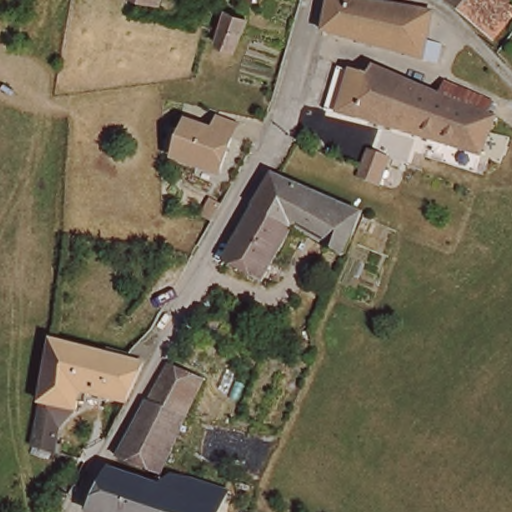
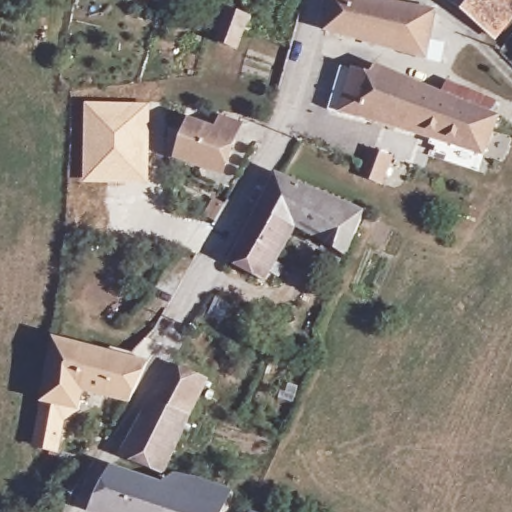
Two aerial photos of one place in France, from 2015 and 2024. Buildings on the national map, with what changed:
unchanged [(166,7),(142,0),(168,0),(166,7)]
unchanged [(439,45),(438,60),(326,31),(330,0),(378,0),(432,7),(434,10),(428,42),(439,45)]
unchanged [(459,3),(462,0),(512,0),(512,1),(487,32),(462,7),(459,3)]
unchanged [(238,47),(224,42),(226,31),(231,11),(247,15),(243,32),(238,47)]
unchanged [(330,101),(343,105),(353,70),(386,80),(383,92),(374,122),(344,112),(328,112),(330,101)]
unchanged [(447,160),(452,145),(374,122),(383,92),(386,80),(388,70),(454,95),(455,96),(458,83),(509,104),(507,117),(495,157),(491,172),(447,160)]
new [(84,102),(149,103),(149,185),(83,182),(84,102)]
unchanged [(223,177),(173,160),(190,120),(214,129),(221,115),(241,123),(223,177)]
unchanged [(362,176),(373,147),(392,155),(381,183),(362,176)]
unchanged [(269,281),(231,261),(277,176),(286,180),(341,202),(332,217),(311,207),(298,230),(269,281)]
unchanged [(311,207),(332,217),(341,202),(368,213),(350,256),(298,230),(311,207)]
unchanged [(144,363),(124,402),(83,389),(78,407),(59,426),(54,452),(32,444),(49,340),(128,360),(144,363)]
unchanged [(179,372),(188,376),(211,388),(193,423),(159,407),(179,372)]
unchanged [(128,460),(159,407),(193,423),(168,477),(128,460)]
unchanged [(163,489),(168,488),(181,487),(196,486),(235,498),(228,512),(100,512),(120,475),(163,489)]

